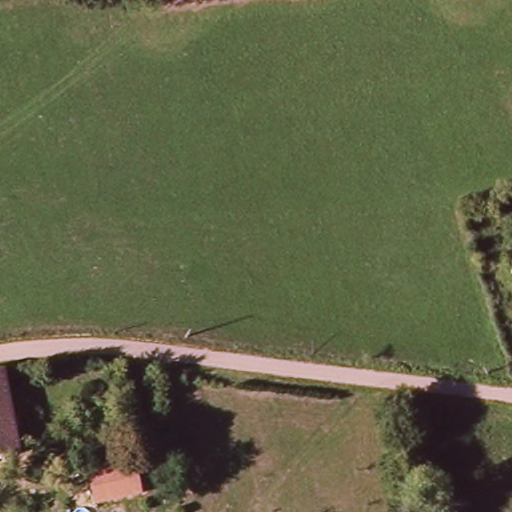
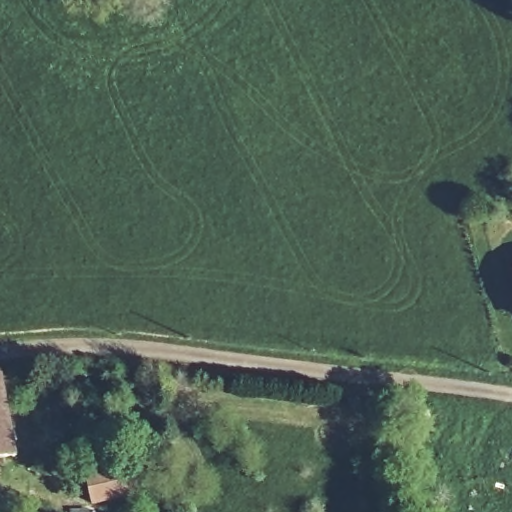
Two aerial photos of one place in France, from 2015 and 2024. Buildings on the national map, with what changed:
unchanged [(9,378),(27,453),(0,460),(0,379),(9,378)]
unchanged [(87,474),(139,464),(144,496),(92,505),(87,474)]

